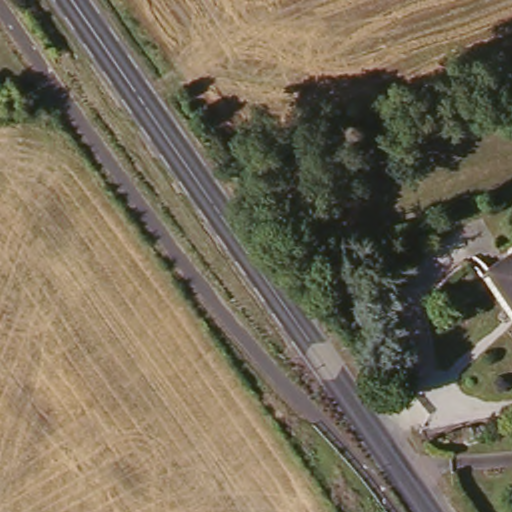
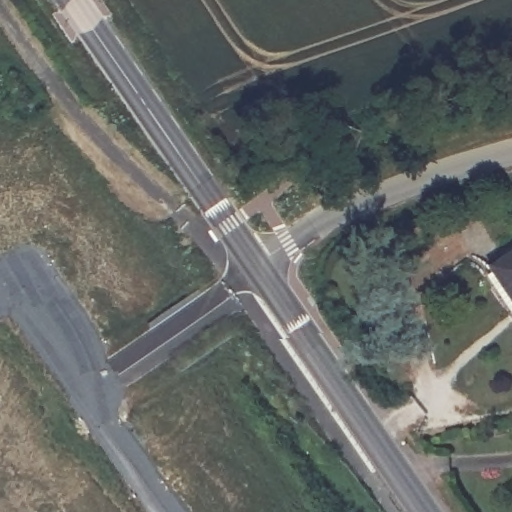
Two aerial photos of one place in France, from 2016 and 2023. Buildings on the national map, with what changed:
unchanged [(512,302),(488,268),(512,252),(512,302)]

